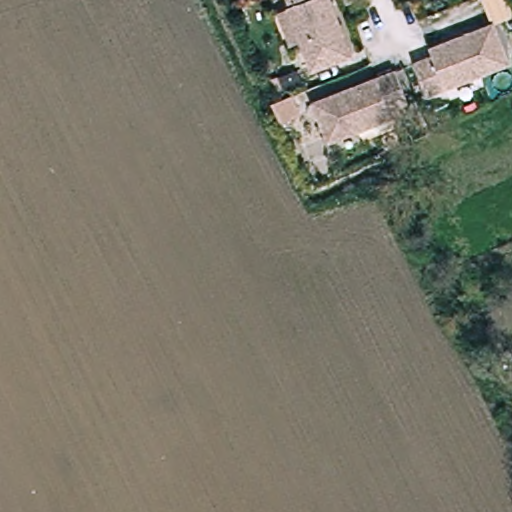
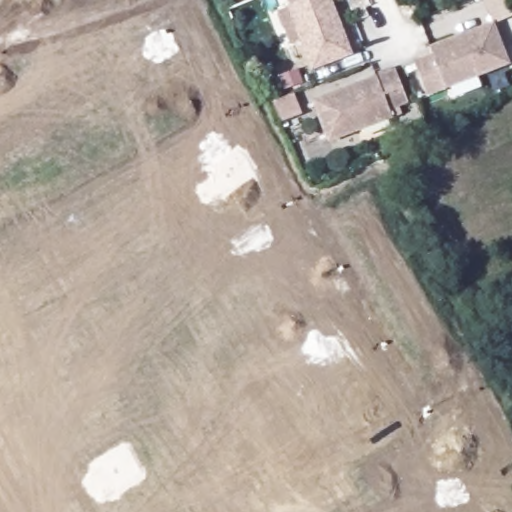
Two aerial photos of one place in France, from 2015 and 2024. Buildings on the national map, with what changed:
unchanged [(358,57),(318,71),(309,43),(296,7),(300,5),(299,0),(338,0),(358,57)]
unchanged [(498,22),(512,62),(476,76),(461,36),(498,22)]
unchanged [(418,61),(430,57),(437,55),(434,46),(461,36),(476,76),(442,90),(430,94),(418,61)]
unchanged [(400,115),(335,137),(322,96),(383,76),(399,71),(406,69),(416,101),(411,103),(397,108),(400,115)]

